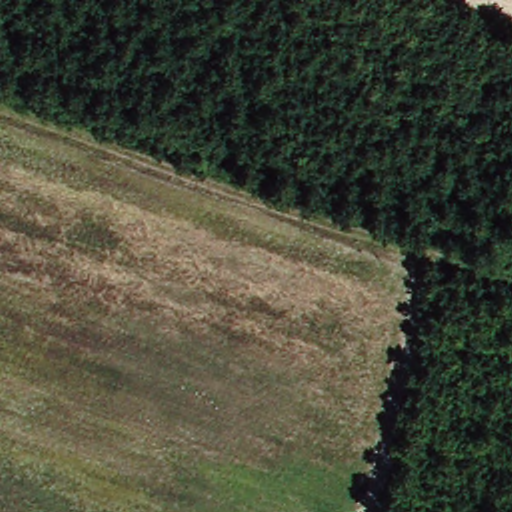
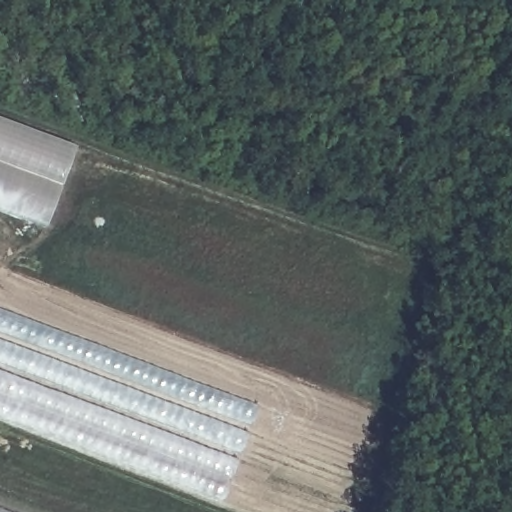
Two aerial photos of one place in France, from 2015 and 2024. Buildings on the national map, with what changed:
new [(43,229),(0,213),(0,121),(75,149),(43,229)]
new [(219,505),(0,422),(0,312),(256,407),(219,505)]
new [(5,512),(0,512),(0,510),(5,512)]

